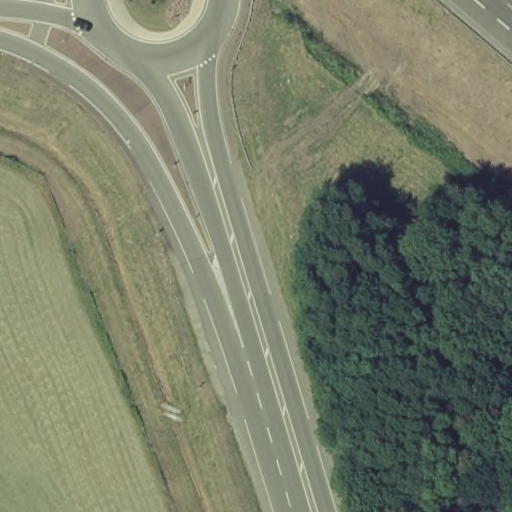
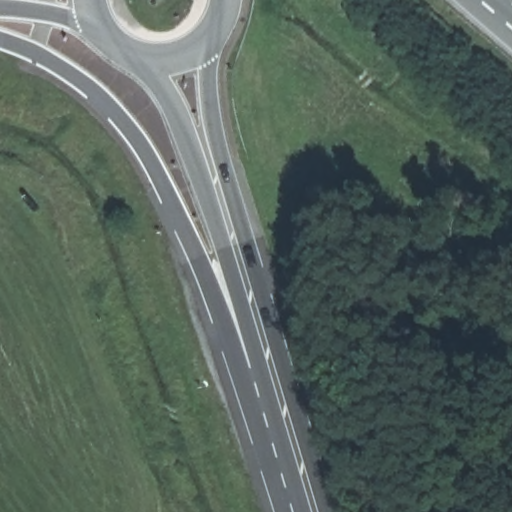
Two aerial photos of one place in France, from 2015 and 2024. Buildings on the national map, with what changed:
unchanged [(403,239),(382,240),(382,237),(382,220),(402,220),(402,232),(403,239)]

